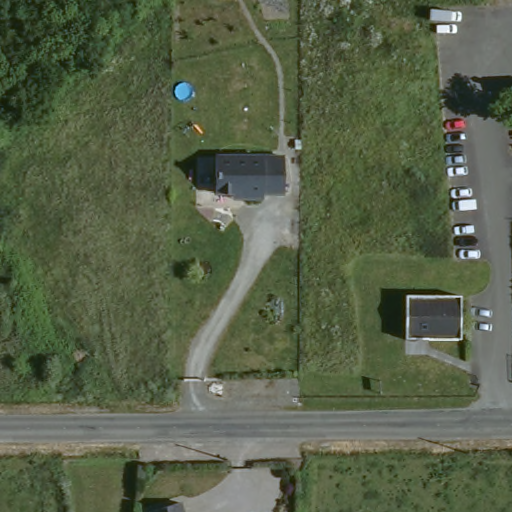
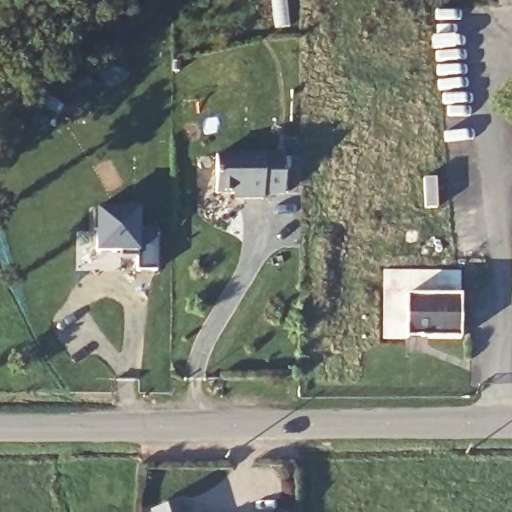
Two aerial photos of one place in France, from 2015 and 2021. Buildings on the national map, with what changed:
unchanged [(286,153),(283,190),(263,191),(261,200),(216,196),(217,151),(286,153)]
new [(136,258),(121,259),(121,252),(97,252),(96,210),(138,210),(139,233),(155,231),(157,271),(137,271),(136,258)]
unchanged [(453,300),(454,341),(404,340),(405,298),(453,300)]
unchanged [(173,505),(178,504),(180,512),(149,512),(148,511),(173,505)]

